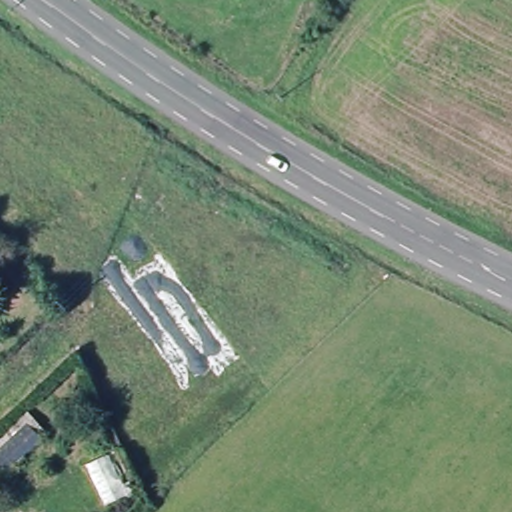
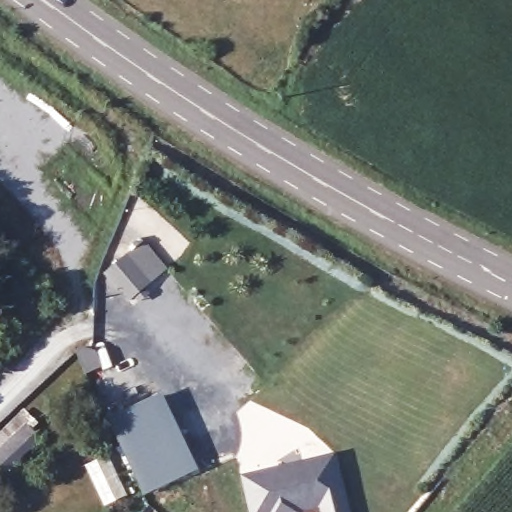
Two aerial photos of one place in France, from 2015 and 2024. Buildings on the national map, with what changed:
new [(131,252),(128,247),(141,237),(168,269),(145,287),(150,294),(140,302),(134,295),(127,302),(103,273),(131,252)]
new [(96,345),(103,367),(85,375),(74,352),(96,345)]
new [(163,391),(200,470),(143,495),(107,416),(163,391)]
unchanged [(6,473),(0,466),(0,440),(22,420),(29,429),(41,441),(6,473)]
new [(96,465),(94,460),(107,454),(126,495),(105,505),(92,476),(94,473),(91,467),(96,465)]
new [(297,505),(298,511),(291,512),(270,512),(270,511),(263,512),(254,512),(245,474),(281,466),(333,454),(334,461),(345,508),(346,512),(324,512),(321,500),(297,505)]

